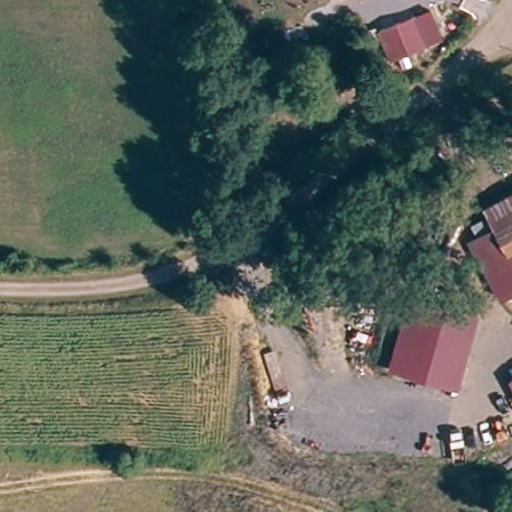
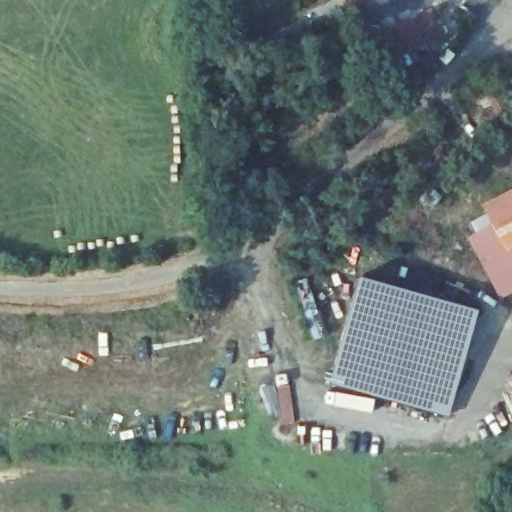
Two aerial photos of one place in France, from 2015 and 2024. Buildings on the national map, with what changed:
unchanged [(339,1),(338,0),(342,0),(339,1)]
unchanged [(443,36),(368,63),(357,31),(434,4),(443,36)]
unchanged [(464,242),(472,237),(463,224),(479,213),(488,225),(512,209),(512,249),(505,253),(512,264),(512,297),(506,301),(464,242)]
new [(330,383),(362,274),(480,308),(449,415),(330,383)]
demolished [(476,311),(461,382),(433,377),(392,369),(394,357),(405,297),(476,311)]
unchanged [(508,382),(512,379),(512,388),(508,382)]

